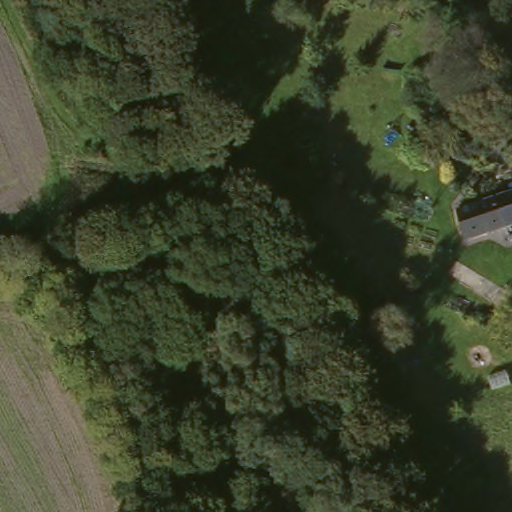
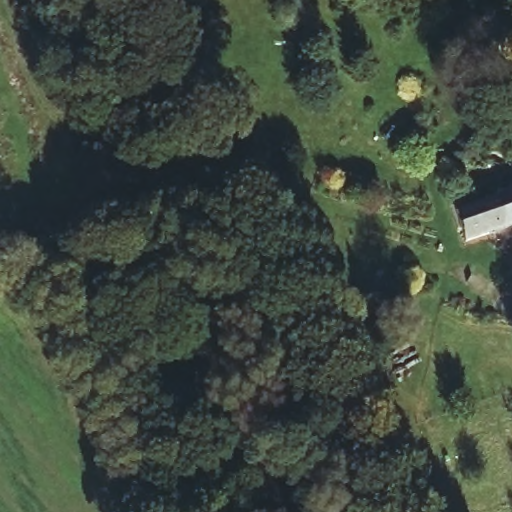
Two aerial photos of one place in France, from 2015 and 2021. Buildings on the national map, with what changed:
unchanged [(511,149),(512,149),(512,153),(511,149)]
unchanged [(512,193),(512,223),(505,225),(463,237),(454,212),(512,193)]

